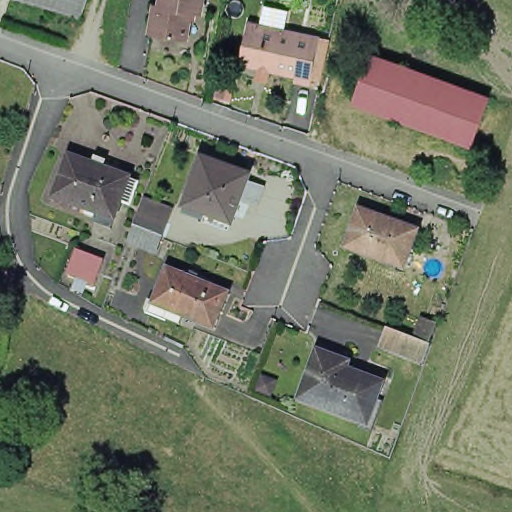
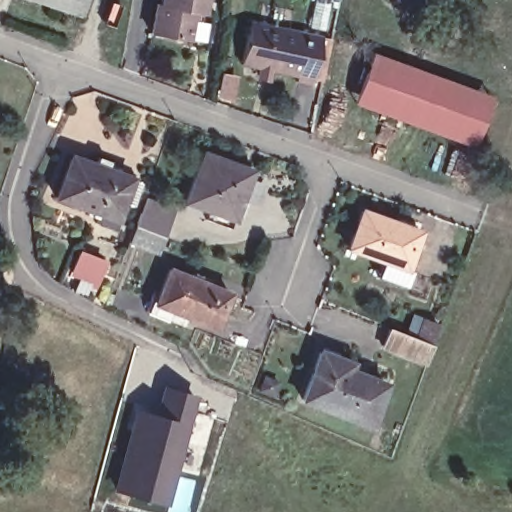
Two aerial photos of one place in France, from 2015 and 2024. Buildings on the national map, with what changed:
unchanged [(46,0),(90,0),(85,13),(46,0)]
unchanged [(162,0),(205,0),(203,11),(192,9),(187,38),(151,30),(156,1),(162,1),(162,0)]
unchanged [(312,83),(295,79),(297,73),(240,61),(250,19),(322,34),(312,83)]
unchanged [(491,94),(474,141),(355,98),(372,50),(491,94)]
unchanged [(209,213),(209,211),(190,204),(194,194),(191,194),(209,145),(237,155),(235,161),(253,168),(237,211),(234,221),(209,213)]
unchanged [(92,218),(94,213),(80,208),(82,203),(53,192),(67,150),(92,159),(95,151),(114,158),(112,166),(127,172),(136,175),(128,199),(119,196),(112,214),(109,224),(92,218)]
unchanged [(136,204),(165,214),(159,230),(153,244),(125,235),(131,219),(136,204)]
unchanged [(419,228),(406,264),(348,244),(361,208),(419,228)]
unchanged [(104,264),(95,284),(71,274),(78,253),(104,264)]
unchanged [(222,294),(209,330),(150,307),(164,272),(222,294)]
unchanged [(440,324),(432,344),(414,337),(420,317),(440,324)]
unchanged [(431,347),(424,364),(382,349),(389,331),(431,347)]
unchanged [(365,427),(299,402),(315,354),(334,361),(346,366),(344,373),(380,386),(365,427)]
new [(168,506),(113,490),(135,409),(155,414),(164,384),(199,395),(168,506)]

